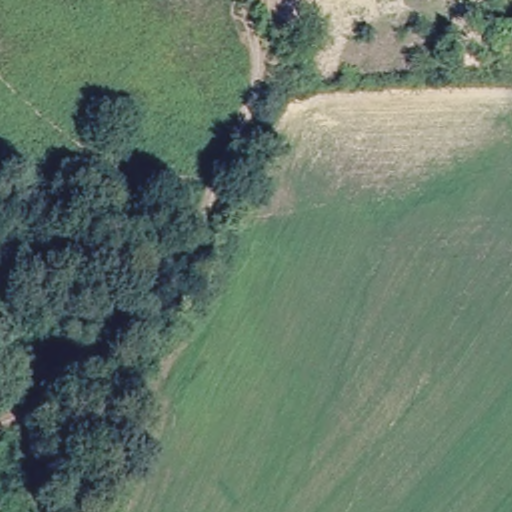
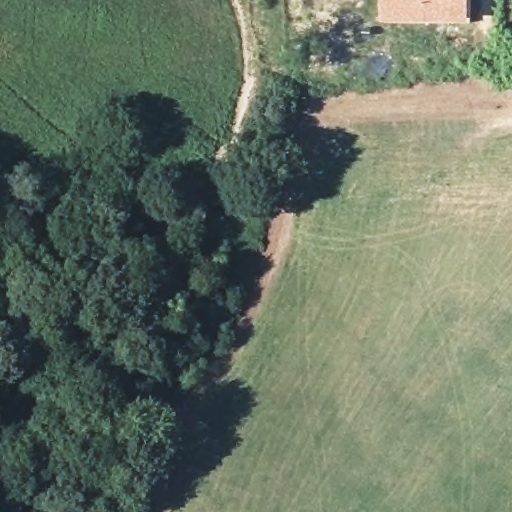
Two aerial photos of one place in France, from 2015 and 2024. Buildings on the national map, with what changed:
new [(381,22),(381,0),(470,0),(470,23),(381,22)]

